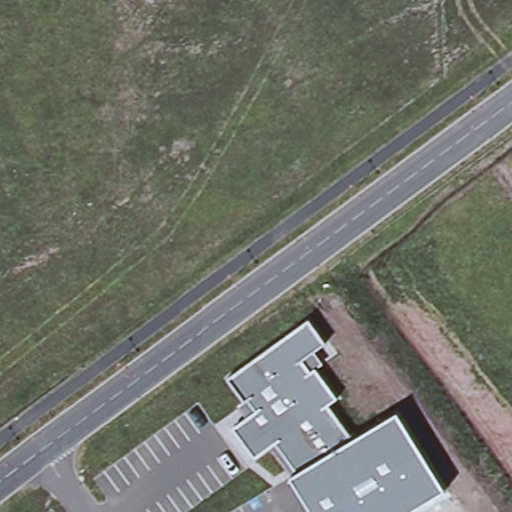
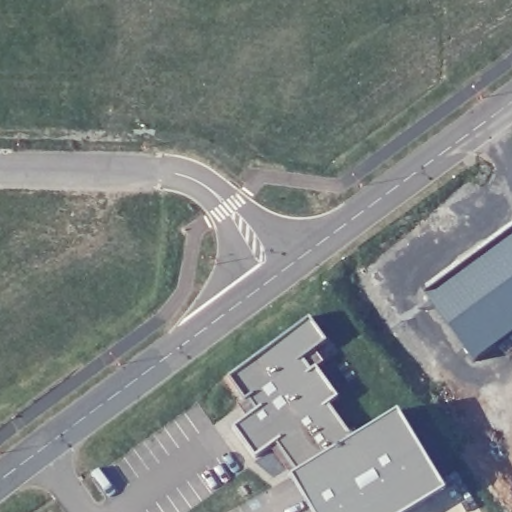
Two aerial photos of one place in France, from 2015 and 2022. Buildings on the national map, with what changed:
new [(512,232),(512,330),(471,359),(428,296),(512,232)]
unchanged [(235,428),(250,417),(239,402),(245,397),(232,377),(310,320),(326,341),(315,349),(324,361),(317,366),(339,398),(330,404),(356,436),(397,410),(446,490),(409,512),(314,512),(292,477),(299,473),(277,444),(255,455),(235,428)]

